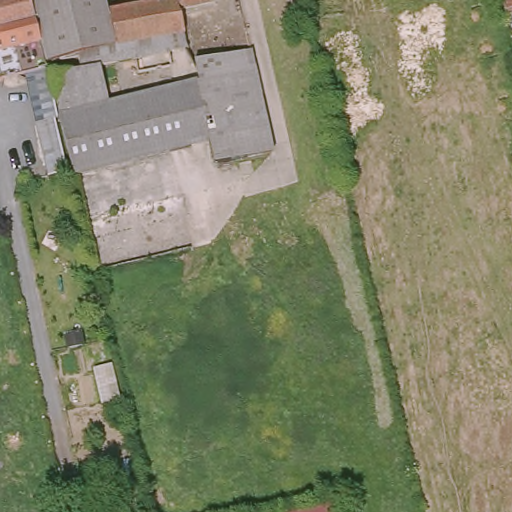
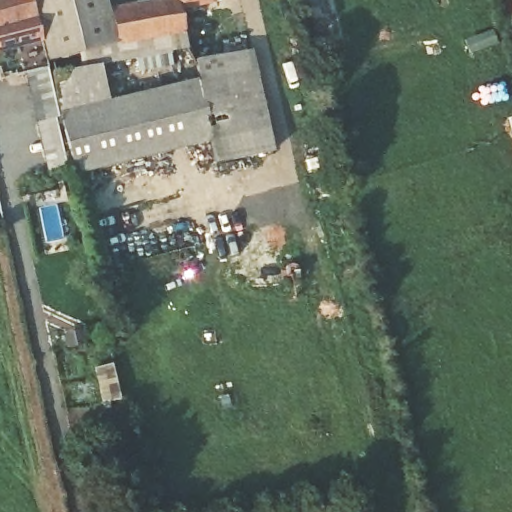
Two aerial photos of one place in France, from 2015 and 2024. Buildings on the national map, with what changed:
unchanged [(34,24),(0,32),(0,0),(28,0),(34,24)]
unchanged [(106,10),(114,45),(183,31),(186,48),(98,67),(94,56),(45,65),(34,24),(28,0),(104,0),(106,10)]
unchanged [(212,2),(213,6),(178,10),(183,31),(114,45),(106,10),(158,0),(157,0),(226,0),(212,2)]
unchanged [(506,28),(499,0),(512,0),(512,28),(506,28)]
unchanged [(109,101),(197,77),(196,62),(249,50),(274,155),(213,169),(208,141),(73,177),(58,120),(56,121),(69,177),(48,182),(22,74),(45,65),(48,80),(100,69),(109,101)]
unchanged [(340,512),(304,512),(339,505),(340,512)]

